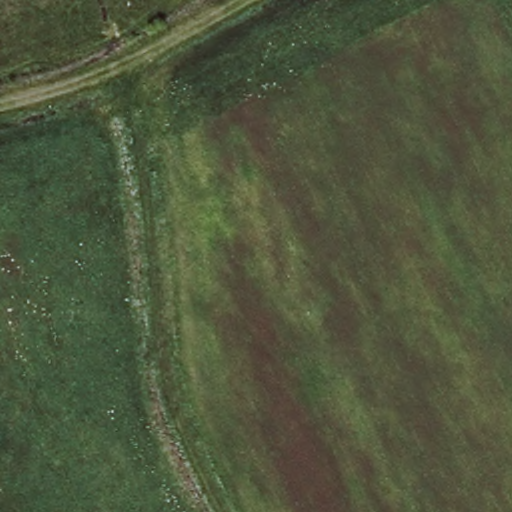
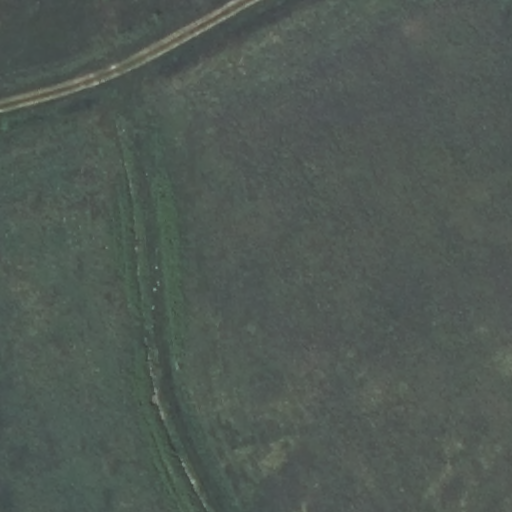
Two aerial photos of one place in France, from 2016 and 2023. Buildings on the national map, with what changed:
[]

